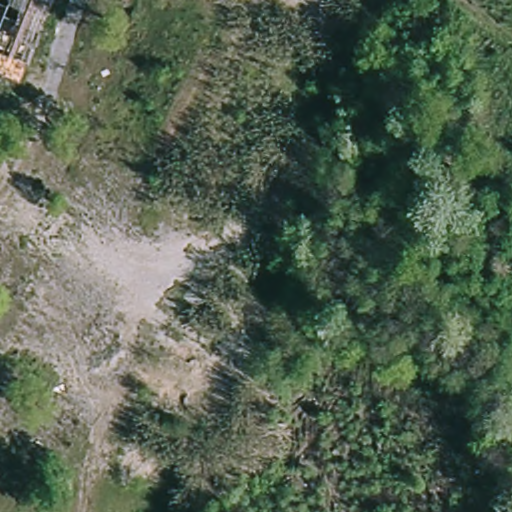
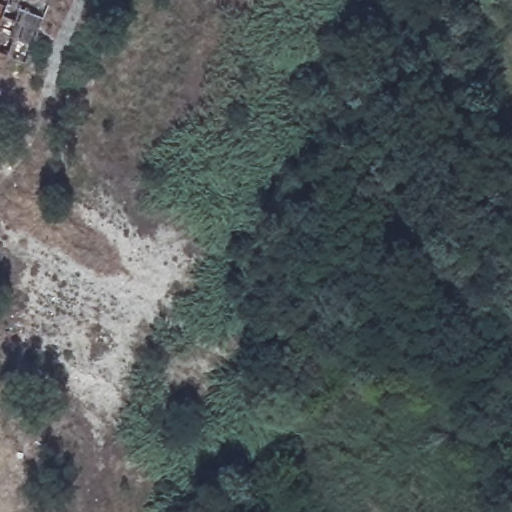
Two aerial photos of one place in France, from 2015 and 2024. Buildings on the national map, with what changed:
unchanged [(0,0),(64,0),(59,13),(46,10),(27,61),(20,60),(12,80),(0,75),(0,0)]

